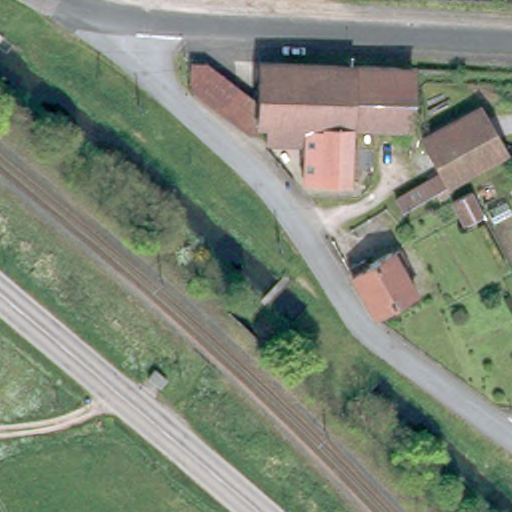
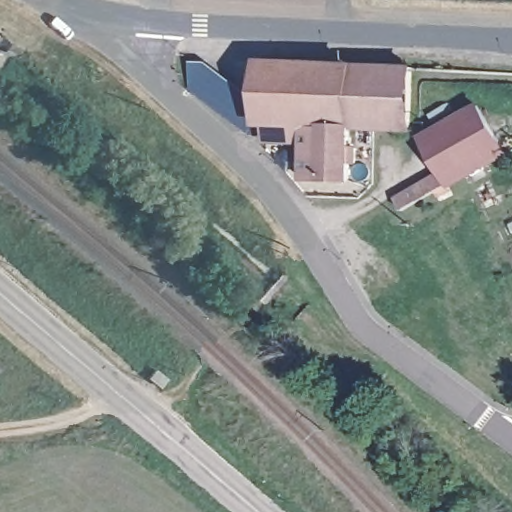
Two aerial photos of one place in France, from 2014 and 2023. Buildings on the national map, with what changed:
unchanged [(355,128),(270,126),(263,125),(262,135),(258,135),(195,87),(196,62),(212,62),(262,100),(263,60),(420,65),(415,131),(381,129),(355,128)]
unchanged [(440,196),(436,190),(403,209),(397,200),(441,172),(440,170),(423,138),(477,108),(503,154),(449,186),(451,189),(440,196)]
unchanged [(309,179),(310,145),(270,142),(270,126),(355,128),(352,181),(309,179)]
demolished [(465,224),(452,201),(470,191),(483,214),(465,224)]
demolished [(407,273),(421,297),(380,319),(352,270),(375,257),(379,265),(397,255),(400,259),(407,273)]

